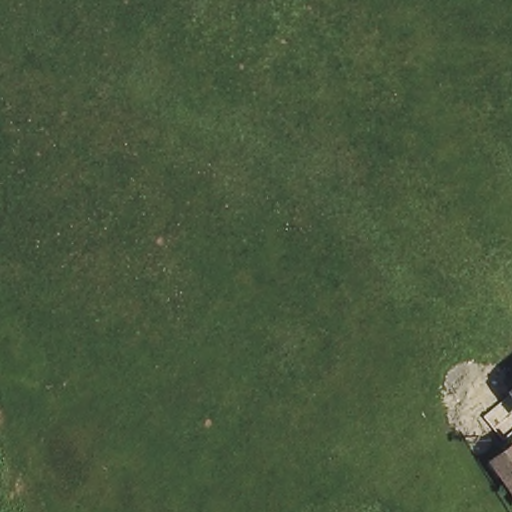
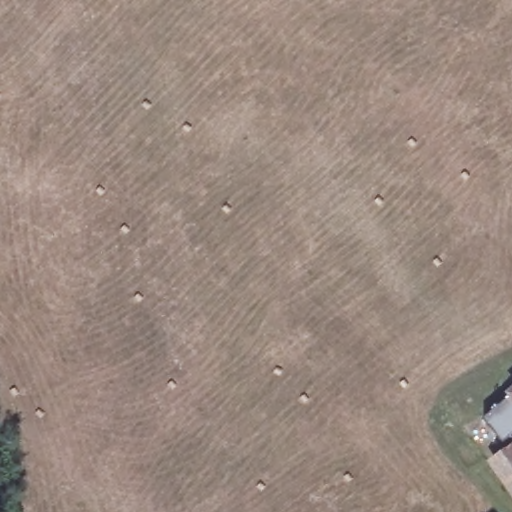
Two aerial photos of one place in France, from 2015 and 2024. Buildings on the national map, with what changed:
unchanged [(502,459),(512,451),(512,474),(503,462),(502,459)]

